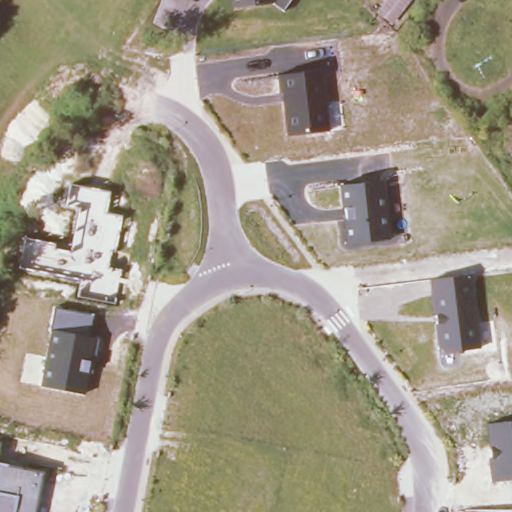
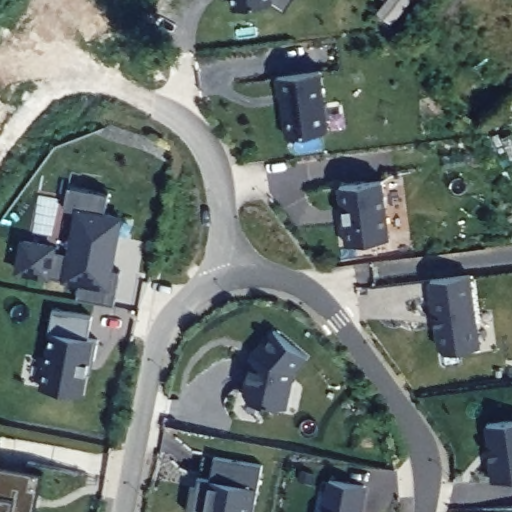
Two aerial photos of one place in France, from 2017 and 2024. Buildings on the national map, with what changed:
unchanged [(232,0),(292,0),(284,11),(274,3),(233,8),(232,0)]
new [(387,0),(412,0),(392,25),(377,13),(387,0)]
unchanged [(323,70),(329,131),(286,136),(281,94),(279,95),(276,75),(323,70)]
unchanged [(387,181),(391,240),(346,245),(343,220),(346,220),(345,207),(342,208),(340,186),(387,181)]
unchanged [(110,191),(106,212),(121,216),(115,252),(108,251),(105,267),(120,270),(114,303),(78,297),(81,279),(18,267),(24,239),(54,245),(53,250),(71,253),(78,209),(65,207),(69,185),(110,191)]
unchanged [(475,275),(482,348),(445,353),(438,347),(436,324),(439,323),(438,314),(433,315),(429,280),(475,275)]
unchanged [(55,309),(93,315),(89,335),(96,336),(86,395),(41,386),(55,309)]
new [(310,360),(296,375),(289,411),(253,403),(248,397),(258,356),(279,333),(310,360)]
unchanged [(492,482),(489,459),(489,458),(487,423),(512,420),(512,480),(492,482)]
new [(199,491),(201,480),(213,483),(217,460),(265,470),(257,512),(190,512),(194,490),(199,491)]
unchanged [(35,512),(0,512),(0,465),(41,472),(35,512)]
new [(368,490),(363,512),(327,512),(333,483),(368,490)]

